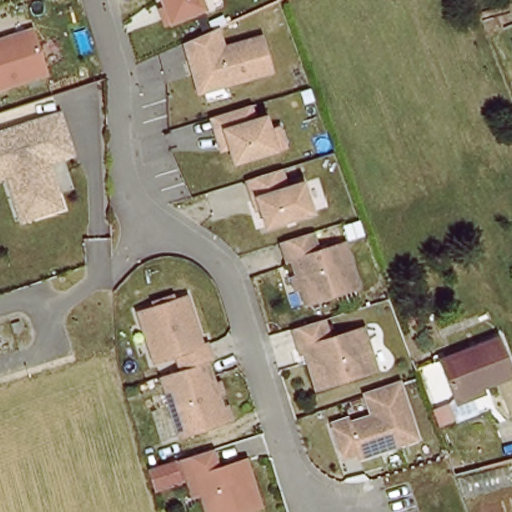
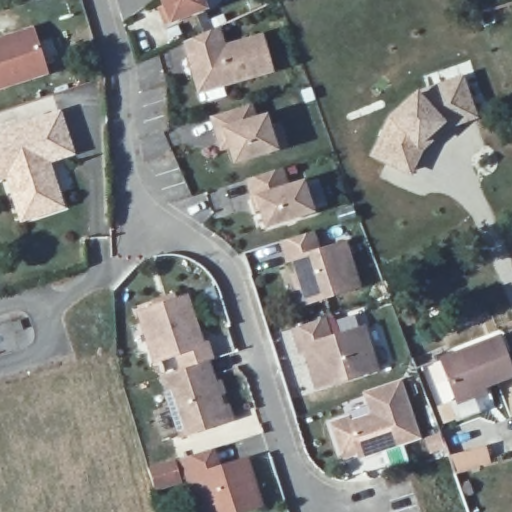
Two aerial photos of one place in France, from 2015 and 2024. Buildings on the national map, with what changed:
unchanged [(204,15),(168,28),(158,0),(199,0),(204,15)]
unchanged [(0,42),(29,32),(44,77),(0,95),(0,42)]
unchanged [(226,49),(261,38),(274,78),(200,100),(184,47),(220,32),(226,49)]
new [(462,72),(479,117),(451,129),(447,124),(421,92),(462,72)]
new [(388,116),(416,88),(421,92),(447,124),(432,138),(423,154),(409,177),(367,155),(388,116)]
unchanged [(253,122),(264,118),(276,157),(234,170),(228,151),(218,153),(211,119),(251,109),(253,122)]
unchanged [(48,168),(61,210),(19,222),(8,182),(0,184),(0,136),(58,118),(74,160),(48,168)]
unchanged [(283,190),(299,184),(311,220),(266,235),(254,201),(248,203),(244,185),(281,172),(283,190)]
unchanged [(291,282),(296,281),(293,265),(286,266),(280,246),(311,237),(317,256),(344,248),(358,293),(304,308),(300,292),(295,294),(291,282)]
unchanged [(225,412),(229,427),(178,442),(160,381),(179,375),(175,361),(153,366),(138,316),(153,311),(151,307),(171,300),(173,305),(185,301),(200,349),(206,348),(211,365),(206,366),(213,389),(218,387),(225,412)]
unchanged [(298,355),(292,335),(322,326),(328,344),(361,335),(374,377),(316,395),(308,370),(303,372),(298,355)]
unchanged [(458,406),(454,399),(440,363),(497,339),(512,374),(512,376),(483,388),(486,395),(458,406)]
unchanged [(369,402),(403,392),(419,445),(362,463),(361,458),(346,462),(336,427),(351,424),(353,429),(376,422),(369,402)]
unchanged [(186,464),(199,460),(216,455),(221,473),(249,464),(264,511),(260,512),(209,512),(205,498),(196,501),(191,484),(186,464)]

